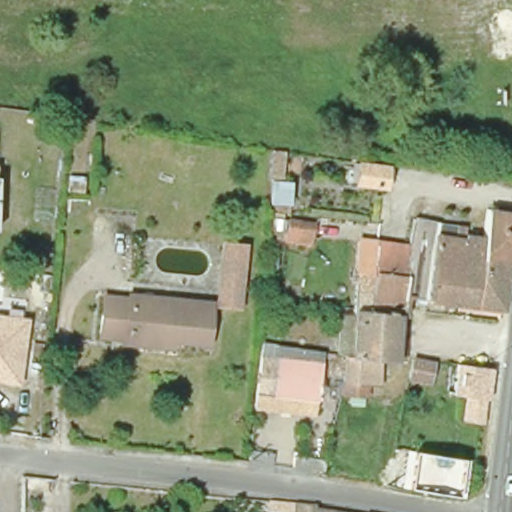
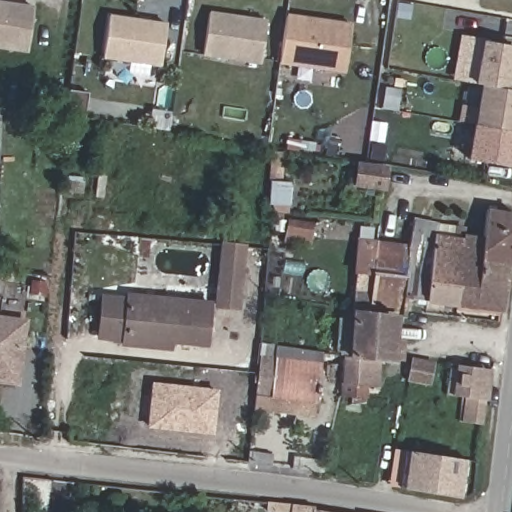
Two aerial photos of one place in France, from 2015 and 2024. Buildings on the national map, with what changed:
new [(0,47),(0,0),(35,5),(29,51),(0,47)]
new [(260,64),(204,55),(210,11),(267,19),(260,64)]
new [(353,22),(345,74),(280,64),(287,13),(353,22)]
new [(161,66),(103,58),(110,14),(168,22),(161,66)]
new [(482,81),(489,38),(512,41),(512,86),(482,81)]
new [(468,159),(474,124),(481,86),(512,90),(512,166),(468,159)]
unchanged [(270,206),(272,181),(269,181),(272,152),(284,154),(281,183),(292,183),(288,207),(270,206)]
unchanged [(356,181),(360,164),(387,168),(385,186),(356,181)]
unchanged [(486,261),(489,238),(494,208),(512,211),(512,264),(486,261)]
unchanged [(313,236),(290,235),(291,220),(313,221),(313,236)]
unchanged [(461,304),(415,298),(411,298),(416,247),(419,221),(443,223),(441,235),(460,237),(461,229),(471,230),(470,235),(461,304)]
unchanged [(287,222),(287,231),(277,231),(277,222),(287,222)]
unchanged [(486,261),(512,264),(512,277),(507,309),(488,307),(461,304),(470,235),(489,238),(486,261)]
unchanged [(402,314),(357,309),(361,270),(378,272),(382,243),(416,247),(411,298),(409,317),(402,316),(402,314)]
unchanged [(245,246),(239,309),(220,307),(226,245),(245,246)]
unchanged [(164,349),(125,346),(126,342),(101,339),(106,300),(131,302),(131,299),(213,305),(208,345),(172,342),(171,350),(164,349)]
unchanged [(345,356),(351,357),(357,309),(402,314),(402,316),(398,358),(398,359),(393,387),(367,385),(366,397),(341,395),(342,383),(345,356)]
unchanged [(20,385),(0,383),(0,315),(29,319),(20,385)]
unchanged [(323,355),(317,417),(251,411),(257,349),(323,355)]
unchanged [(431,364),(429,385),(410,383),(412,362),(431,364)]
unchanged [(464,421),(468,398),(464,397),(453,395),(458,364),(492,368),(487,401),(485,400),(481,424),(464,421)]
new [(220,389),(215,435),(147,428),(151,382),(220,389)]
unchanged [(456,496),(407,489),(412,451),(462,458),(456,496)]
unchanged [(270,506),(314,511),(314,512),(270,512),(270,506)]

